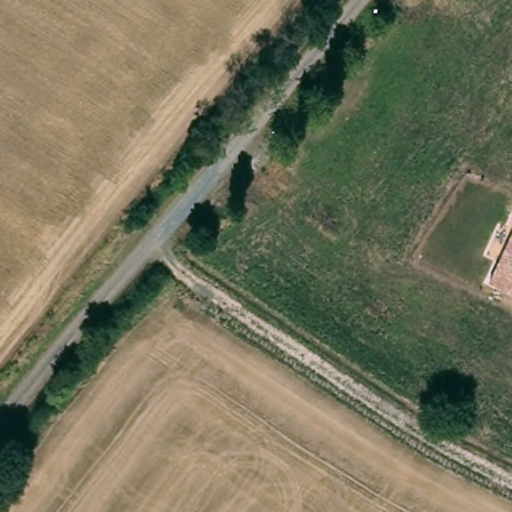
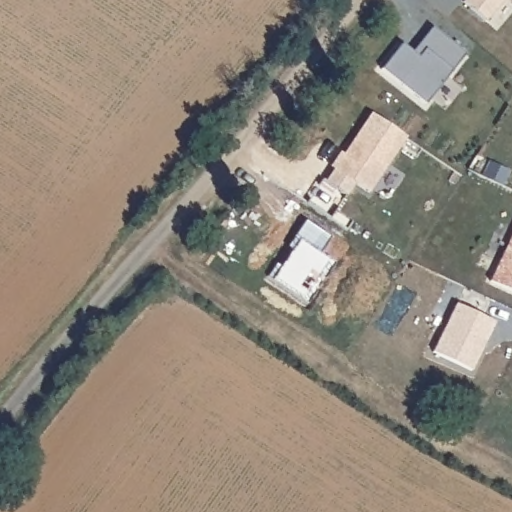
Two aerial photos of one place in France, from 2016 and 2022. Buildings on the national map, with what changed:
new [(462,2),(464,0),(504,0),(485,22),(462,2)]
new [(381,69),(400,46),(411,54),(431,29),(463,55),(450,71),(424,105),(381,69)]
new [(368,193),(354,185),(346,197),(324,182),(332,170),(330,168),(339,153),(342,155),(370,114),(405,137),(368,193)]
unchanged [(512,233),(512,292),(489,281),(512,233)]
new [(431,353),(454,305),(494,323),(470,372),(431,353)]

